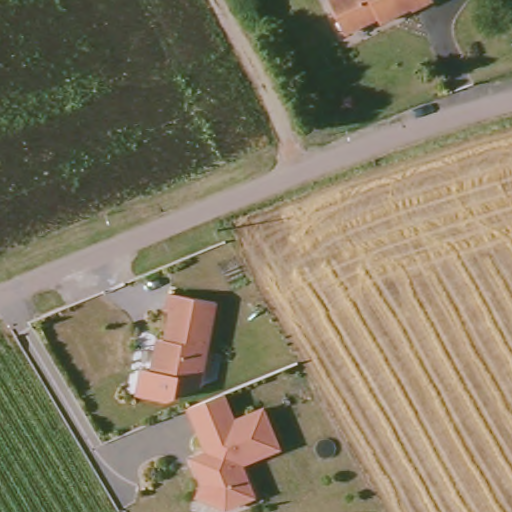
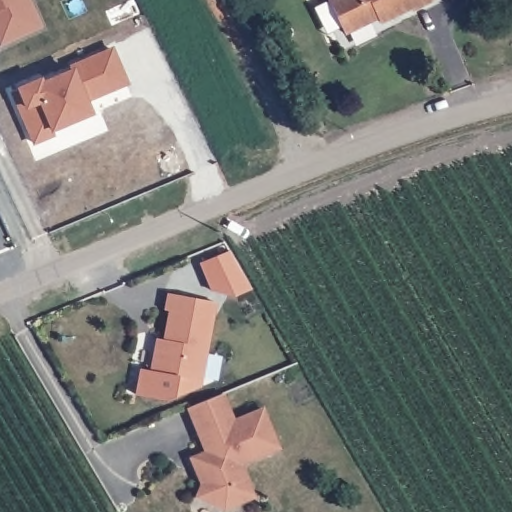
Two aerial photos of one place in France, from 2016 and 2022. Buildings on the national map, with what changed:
new [(30,0),(42,25),(0,46),(0,0),(30,0)]
unchanged [(431,0),(432,1),(414,9),(413,6),(382,22),(379,17),(344,32),(330,0),(331,0),(431,0)]
new [(88,104),(93,115),(54,131),(56,137),(34,146),(12,94),(18,92),(16,89),(42,77),(43,80),(74,66),(113,46),(128,84),(88,104)]
unchanged [(164,340),(170,310),(165,310),(168,292),(215,301),(201,380),(152,370),(155,353),(158,338),(164,340)]
new [(139,368),(152,370),(201,380),(199,387),(167,399),(136,393),(139,368)]
unchanged [(222,392),(233,420),(262,408),(278,447),(239,462),(244,475),(230,481),(234,492),(228,495),(224,506),(196,494),(201,481),(193,462),(208,456),(188,406),(222,392)]

